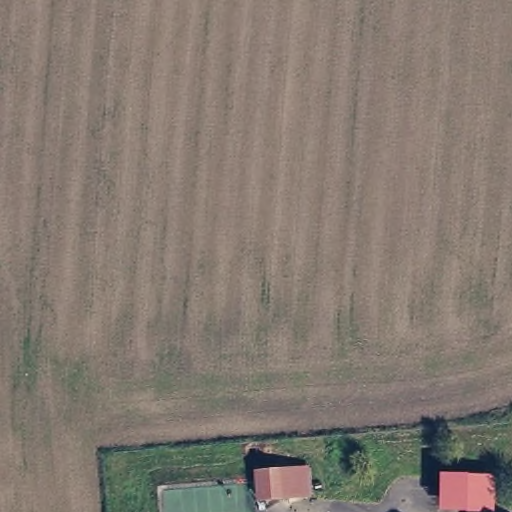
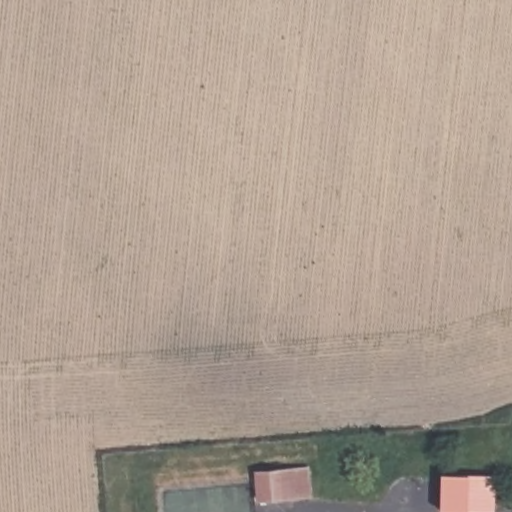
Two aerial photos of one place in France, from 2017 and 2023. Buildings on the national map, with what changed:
unchanged [(256,471),(282,468),(285,499),(257,500),(256,471)]
unchanged [(440,476),(493,475),(494,510),(440,512),(440,476)]

